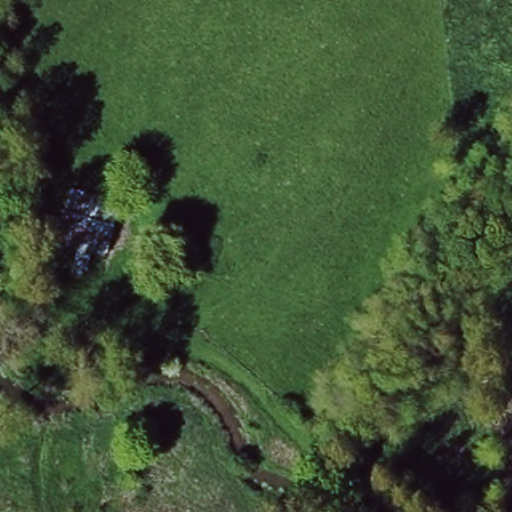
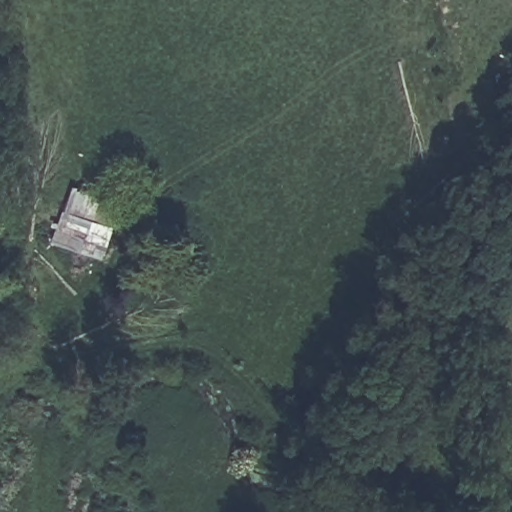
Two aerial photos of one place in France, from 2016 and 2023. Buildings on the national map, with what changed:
unchanged [(127,202),(107,261),(54,247),(70,189),(127,202)]

